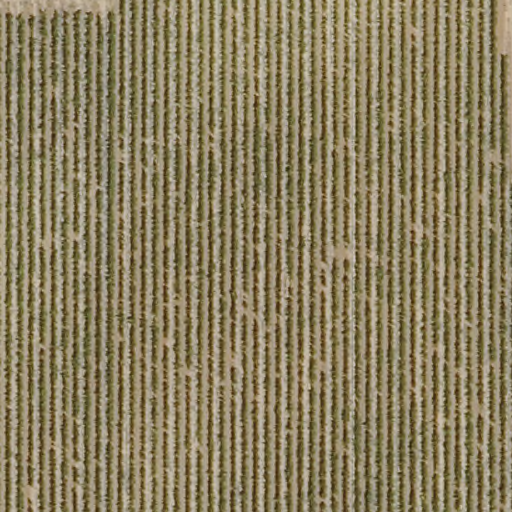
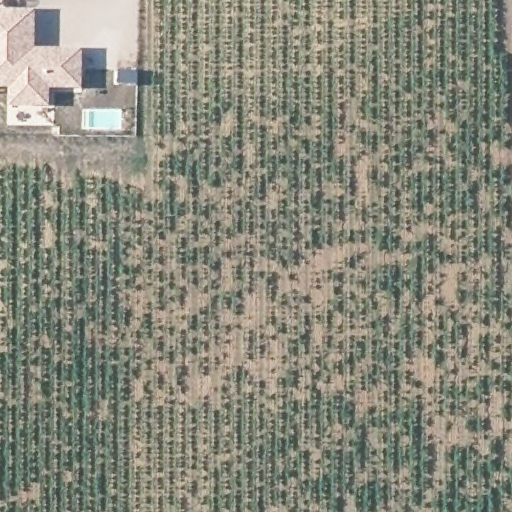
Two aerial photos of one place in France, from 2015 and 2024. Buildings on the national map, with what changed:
new [(39,47),(85,48),(85,90),(53,90),(52,106),(9,106),(9,89),(0,89),(0,10),(38,9),(39,47)]

